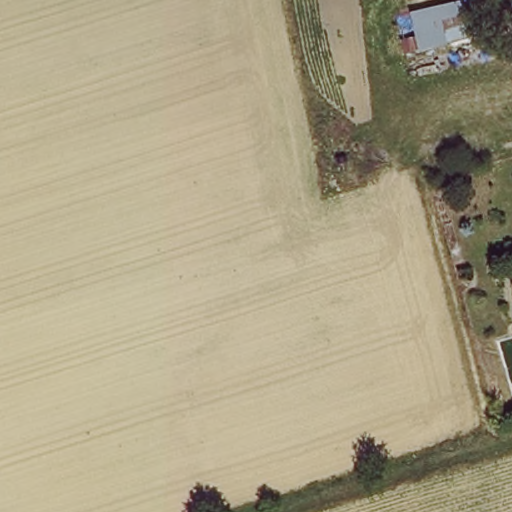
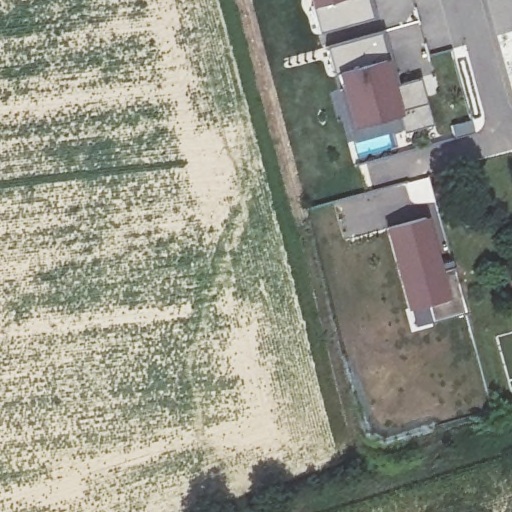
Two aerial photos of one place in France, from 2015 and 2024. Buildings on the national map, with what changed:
new [(379,18),(321,34),(312,0),(374,0),(379,18)]
demolished [(393,11),(440,0),(471,0),(480,31),(399,50),(393,11)]
new [(384,32),(397,85),(422,79),(433,125),(406,133),(401,115),(353,129),(329,48),(384,32)]
new [(396,153),(398,159),(394,160),(403,176),(370,187),(364,163),(396,153)]
new [(429,176),(435,201),(412,205),(405,183),(429,176)]
new [(466,313),(435,324),(413,332),(385,228),(431,214),(436,233),(442,259),(444,270),(454,268),(466,313)]
unchanged [(510,280),(512,279),(512,289),(510,280)]

